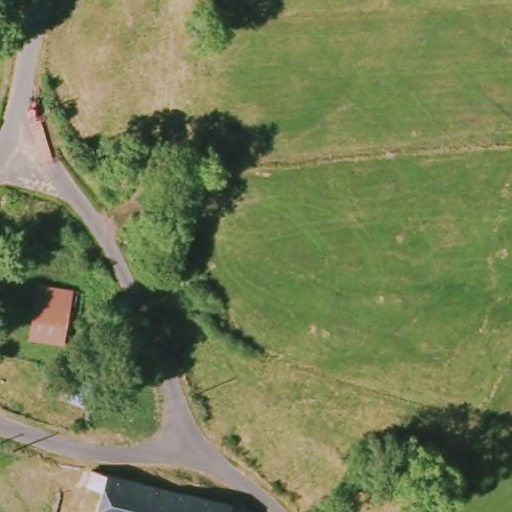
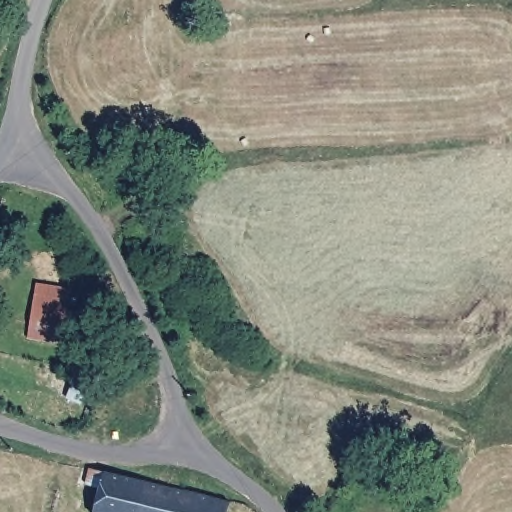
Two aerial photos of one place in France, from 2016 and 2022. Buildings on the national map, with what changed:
unchanged [(38,288),(74,293),(64,347),(28,342),(38,288)]
unchanged [(97,490),(84,488),(88,472),(228,504),(226,512),(92,512),(97,490)]

